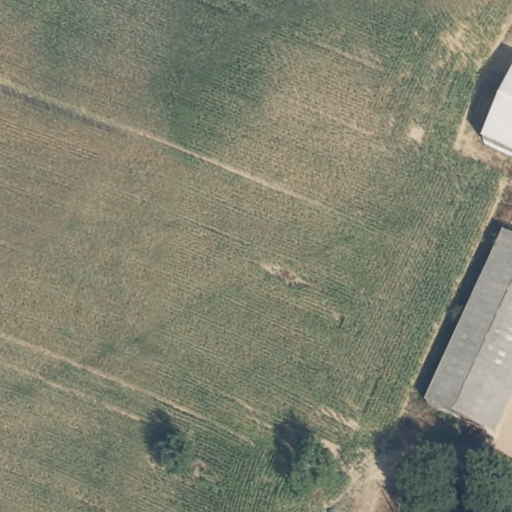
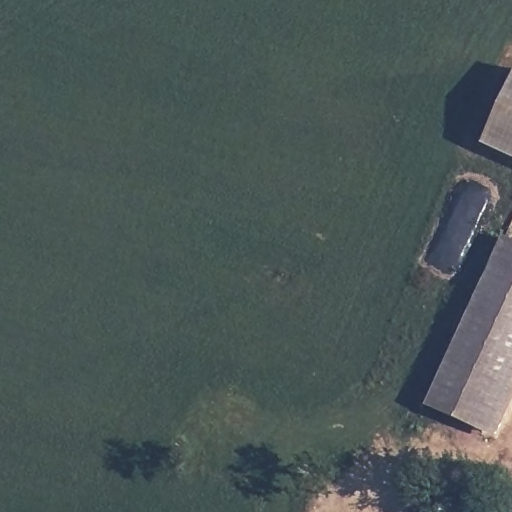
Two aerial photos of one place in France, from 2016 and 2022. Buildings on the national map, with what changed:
unchanged [(484,146),(512,85),(512,159),(484,146)]
unchanged [(462,427),(434,415),(508,249),(512,250),(512,316),(462,427)]
unchanged [(488,439),(462,427),(512,316),(512,387),(488,439)]

